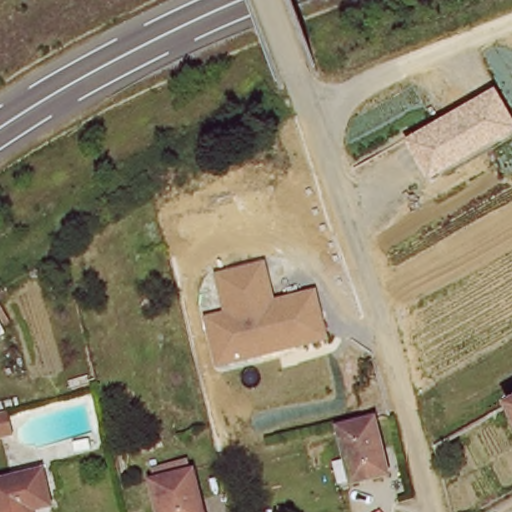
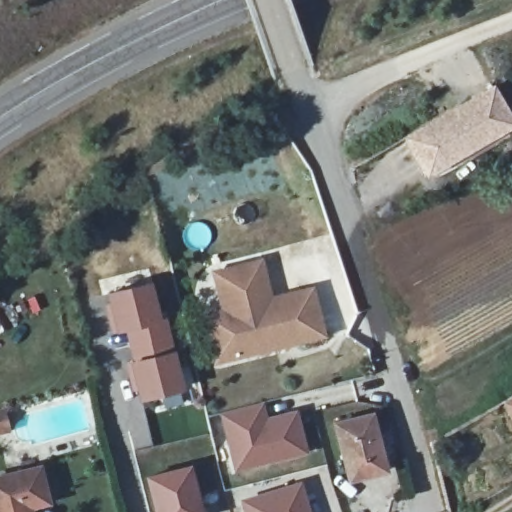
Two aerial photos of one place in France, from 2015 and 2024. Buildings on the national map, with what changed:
unchanged [(427,187),(399,143),(490,91),(512,129),(512,138),(427,187)]
unchanged [(200,316),(222,310),(213,273),(264,260),(274,298),(315,288),(327,340),(217,366),(200,316)]
new [(135,348),(131,330),(118,334),(114,319),(118,317),(113,297),(153,287),(162,322),(167,321),(172,338),(135,348)]
new [(145,401),(139,380),(136,381),(132,367),(140,365),(135,348),(172,338),(185,391),(145,401)]
new [(301,408),(311,449),(251,464),(234,453),(223,408),(261,398),(266,416),(301,408)]
unchanged [(498,408),(512,400),(512,431),(498,408)]
unchanged [(7,410),(12,434),(0,438),(0,412),(7,410)]
unchanged [(371,420),(384,474),(345,485),(333,429),(371,420)]
unchanged [(191,467),(201,512),(158,512),(150,478),(191,467)]
unchanged [(34,468),(44,505),(24,512),(0,512),(0,478),(34,468)]
new [(300,480),(309,512),(248,512),(244,497),(300,480)]

